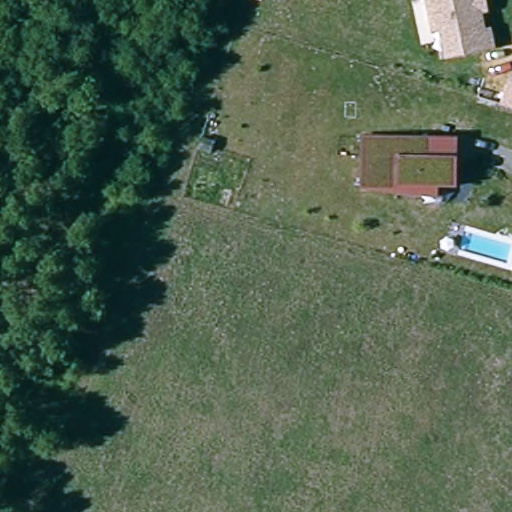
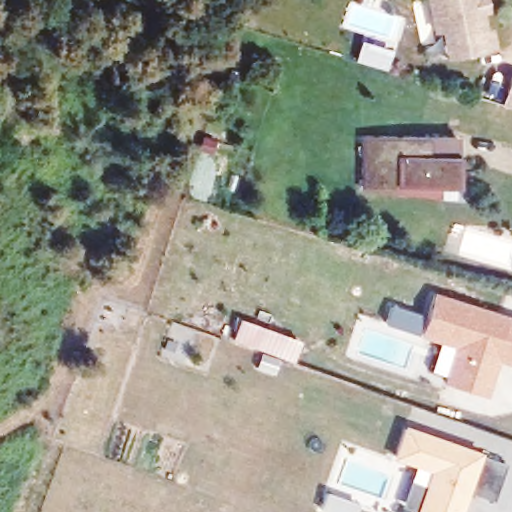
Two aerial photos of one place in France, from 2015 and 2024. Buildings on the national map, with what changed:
unchanged [(440,27),(432,29),(427,0),(482,0),(482,1),(484,7),(480,9),(477,9),(478,14),(482,29),(488,27),(492,45),(473,49),(468,50),(446,55),(440,27)]
unchanged [(511,77),(512,77),(512,108),(503,106),(506,92),(511,77)]
unchanged [(456,184),(396,185),(396,187),(364,187),(364,136),(456,135),(456,184)]
new [(485,397),(441,382),(452,347),(418,336),(432,292),(512,317),(512,364),(497,360),(485,397)]
new [(467,491),(460,512),(413,512),(413,510),(399,505),(408,478),(423,484),(428,470),(390,456),(402,422),(481,451),(480,454),(504,462),(491,499),(467,491)]

